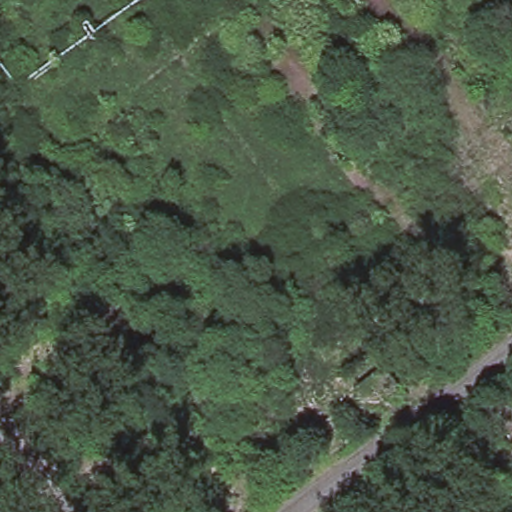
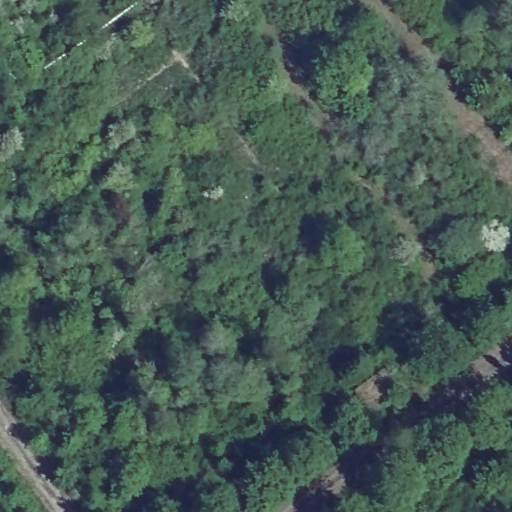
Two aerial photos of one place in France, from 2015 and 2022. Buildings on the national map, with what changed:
unchanged [(377,417),(355,391),(382,367),(400,396),(377,417)]

